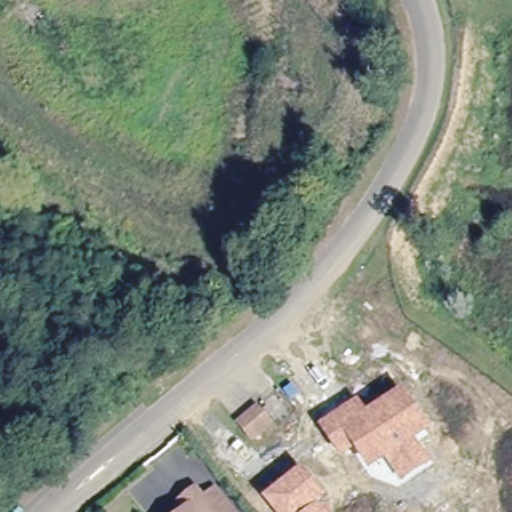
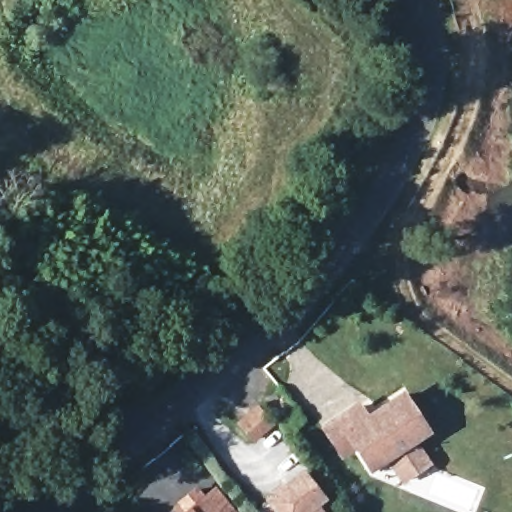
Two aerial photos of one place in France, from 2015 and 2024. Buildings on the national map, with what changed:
unchanged [(402,483),(386,461),(368,471),(356,450),(341,461),(318,427),(357,400),(366,411),(402,388),(431,431),(417,441),(432,463),(402,483)]
unchanged [(269,421),(273,426),(255,440),(251,436),(242,425),(260,411),(269,421)]
unchanged [(262,498),(301,465),(326,496),(317,504),(323,512),(272,512),(262,498)]
unchanged [(189,508),(182,499),(197,486),(205,496),(217,487),(236,512),(184,512),(189,508)]

